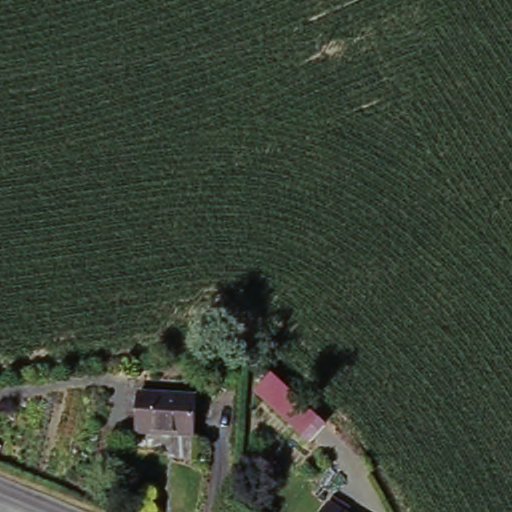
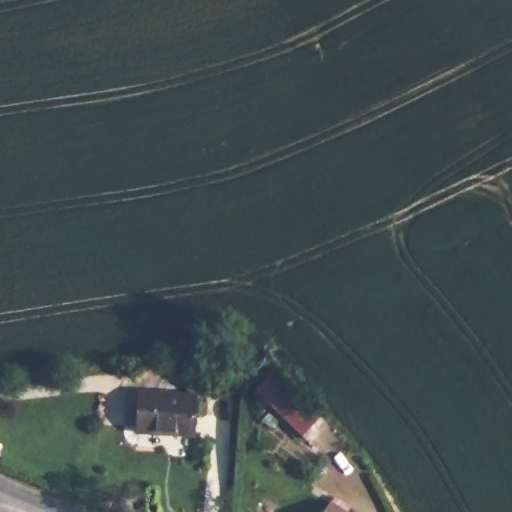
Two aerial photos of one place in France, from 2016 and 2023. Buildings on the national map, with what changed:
unchanged [(303,404),(294,412),(262,380),(269,372),(303,404)]
unchanged [(196,399),(193,437),(141,432),(145,395),(196,399)]

